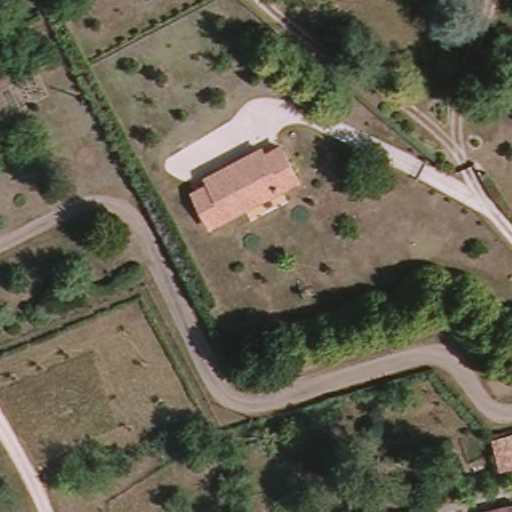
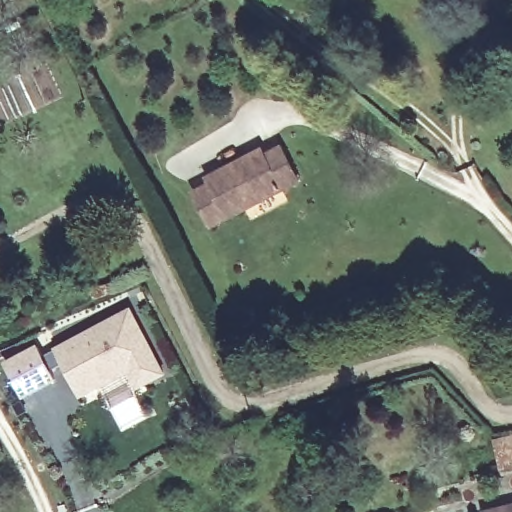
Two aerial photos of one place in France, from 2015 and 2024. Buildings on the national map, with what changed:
unchanged [(297,182),(210,228),(193,195),(210,186),(206,180),(235,165),(262,151),(265,158),(281,150),(297,182)]
new [(77,394),(70,380),(60,362),(48,368),(52,377),(20,395),(3,363),(35,346),(40,355),(52,347),(127,307),(161,370),(135,385),(121,360),(125,368),(77,394)]
unchanged [(512,442),(511,438),(512,438),(512,442)]
unchanged [(512,507),(512,512),(493,512),(512,507)]

